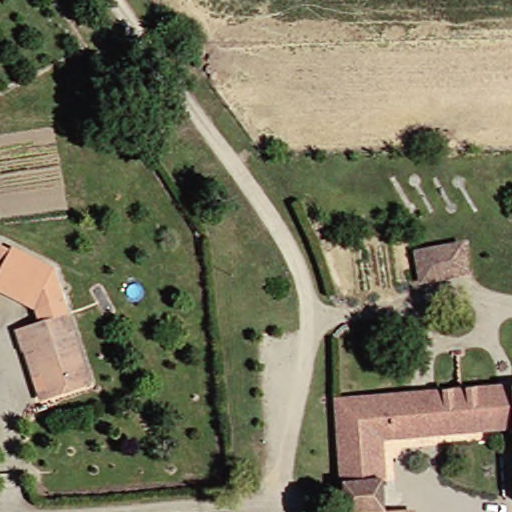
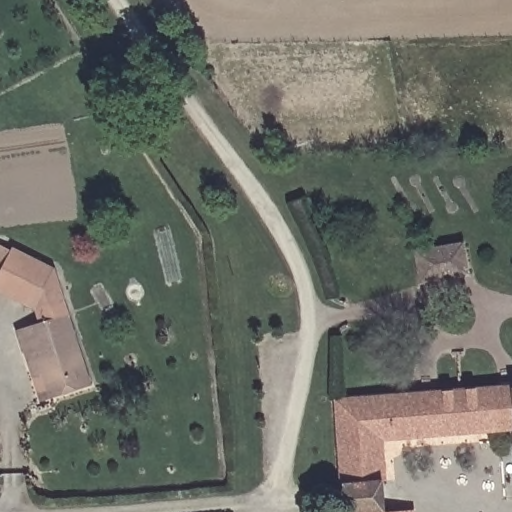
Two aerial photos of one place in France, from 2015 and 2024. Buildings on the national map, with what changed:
unchanged [(463,242),(467,273),(418,281),(413,250),(463,242)]
unchanged [(60,272),(72,312),(50,318),(0,288),(0,282),(20,248),(60,272)]
unchanged [(32,351),(27,334),(77,318),(97,385),(59,397),(51,370),(39,372),(32,351)]
unchanged [(342,409),(379,407),(512,398),(512,497),(498,497),(495,433),(441,437),(381,441),(384,495),(385,499),(385,512),(349,512),(348,501),(342,409)]

